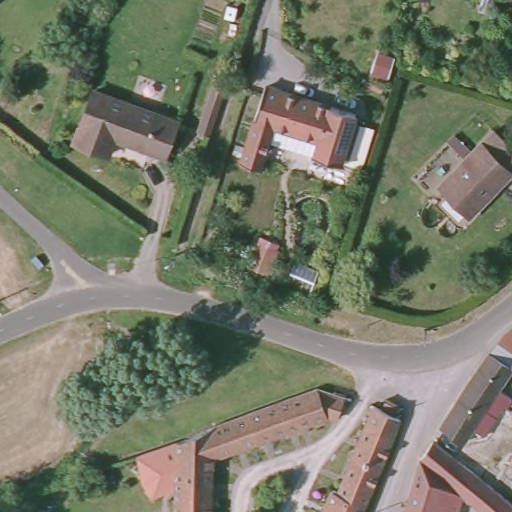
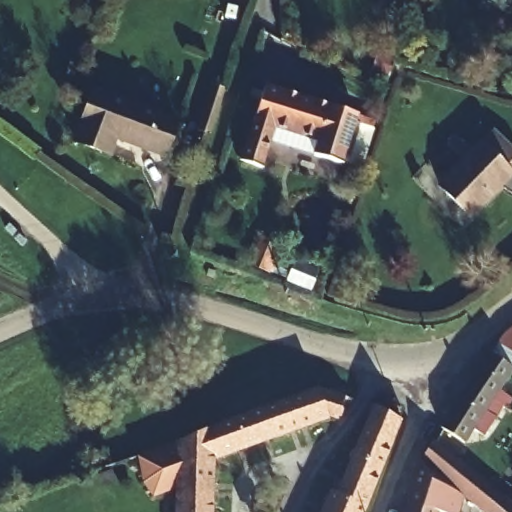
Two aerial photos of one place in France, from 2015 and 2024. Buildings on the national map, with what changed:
unchanged [(343,161),(269,137),(260,161),(242,156),(265,80),(358,112),(343,161)]
unchanged [(167,156),(114,140),(110,152),(75,141),(89,90),(178,117),(167,156)]
unchanged [(432,178),(489,126),(512,149),(512,160),(504,167),(460,210),(432,178)]
unchanged [(512,323),(512,357),(495,387),(512,400),(505,411),(497,407),(482,431),(472,424),(460,441),(440,427),(499,332),(512,323)]
unchanged [(156,476),(138,473),(137,455),(320,390),(321,392),(328,411),(215,450),(215,512),(177,512),(176,468),(156,476)]
unchanged [(334,492),(368,413),(397,427),(363,512),(317,512),(327,489),(334,492)]
unchanged [(494,512),(478,499),(470,508),(458,497),(429,472),(418,462),(432,438),(512,504),(512,505),(505,512),(494,512)]
unchanged [(449,512),(437,505),(435,512),(403,512),(418,462),(429,472),(458,497),(451,512),(449,512)]
unchanged [(478,499),(494,512),(475,512),(470,508),(478,499)]
unchanged [(512,512),(505,512),(512,505),(512,512)]

